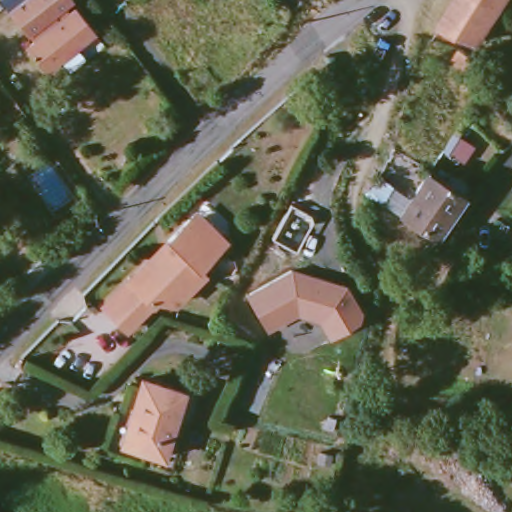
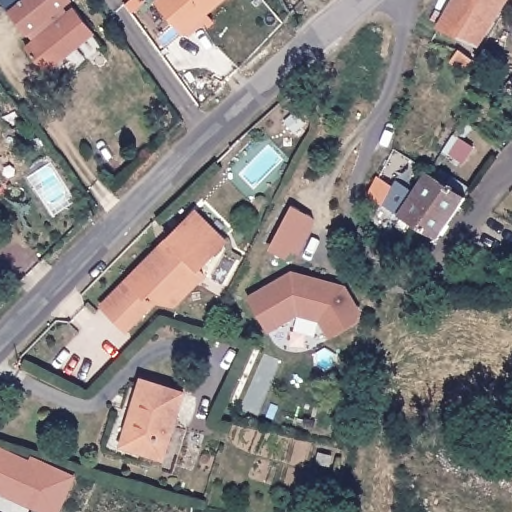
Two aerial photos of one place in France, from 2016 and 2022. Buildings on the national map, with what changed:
unchanged [(38,27),(32,32),(13,8),(24,0),(71,0),(71,1),(61,9),(68,16),(75,11),(83,20),(94,35),(50,69),(30,45),(44,35),(38,27)]
new [(225,0),(185,35),(158,3),(162,0),(225,0)]
unchanged [(481,38),(443,21),(454,0),(495,0),(503,4),(481,38)]
unchanged [(495,0),(505,0),(503,4),(495,0)]
unchanged [(467,66),(452,55),(461,44),(475,55),(467,66)]
new [(295,111),(305,123),(294,132),(284,121),(295,111)]
unchanged [(466,195),(436,237),(416,225),(399,215),(428,171),(447,184),(466,195)]
unchanged [(388,182),(380,200),(368,195),(376,177),(388,182)]
unchanged [(208,260),(212,265),(182,293),(156,300),(125,328),(100,301),(158,247),(162,251),(171,244),(166,239),(189,217),(200,229),(207,222),(226,242),(208,260)]
unchanged [(248,298),(294,270),(349,285),(364,310),(361,321),(331,340),(321,322),(299,315),(268,334),(248,298)]
unchanged [(179,393),(159,457),(123,447),(133,415),(128,412),(138,381),(179,393)]
new [(59,512),(40,512),(0,493),(0,447),(30,460),(32,455),(76,475),(59,512)]

